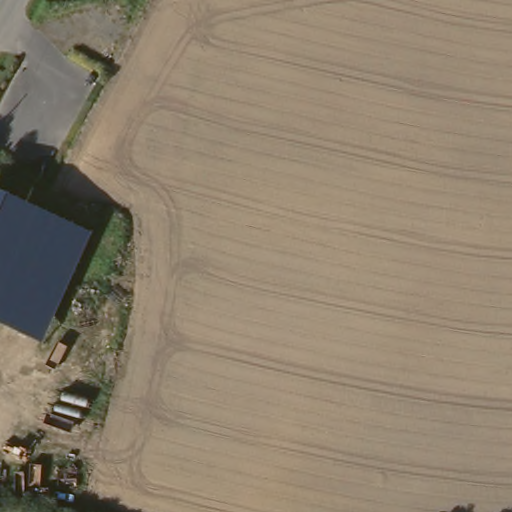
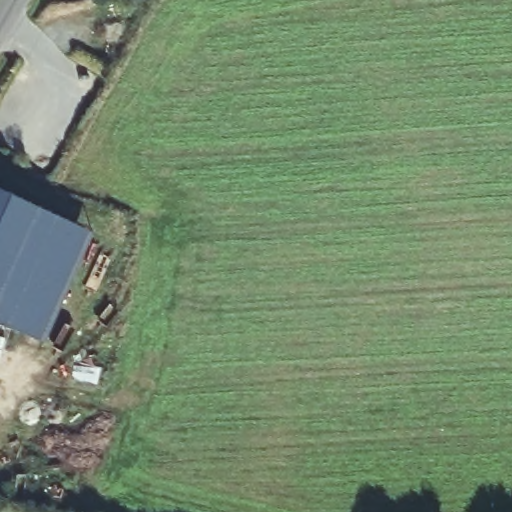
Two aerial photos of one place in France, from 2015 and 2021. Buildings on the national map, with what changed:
unchanged [(0,326),(0,195),(94,232),(44,345),(0,326)]

